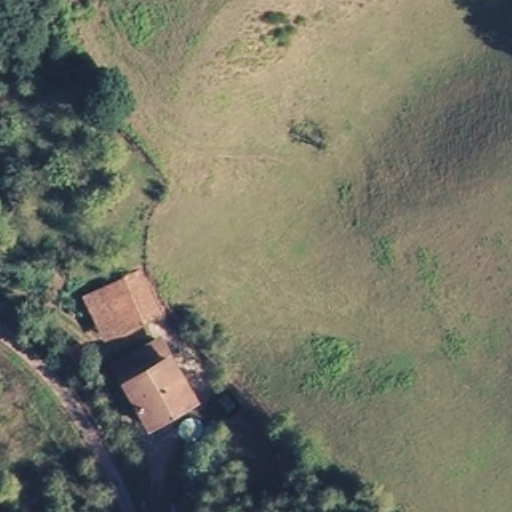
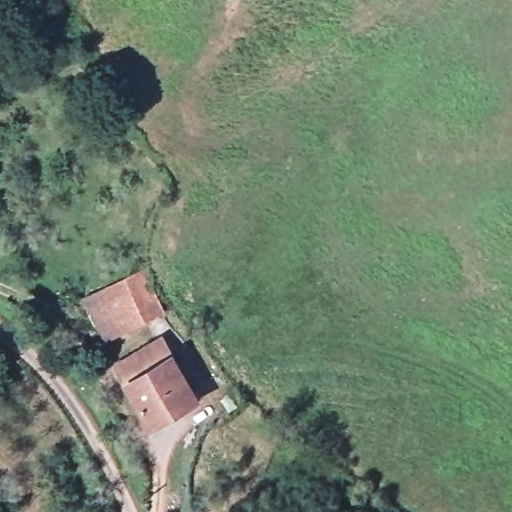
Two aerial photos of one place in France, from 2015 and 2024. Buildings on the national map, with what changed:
unchanged [(125,340),(121,334),(102,346),(72,289),(136,255),(168,314),(125,340)]
unchanged [(157,334),(202,397),(163,424),(117,362),(157,334)]

